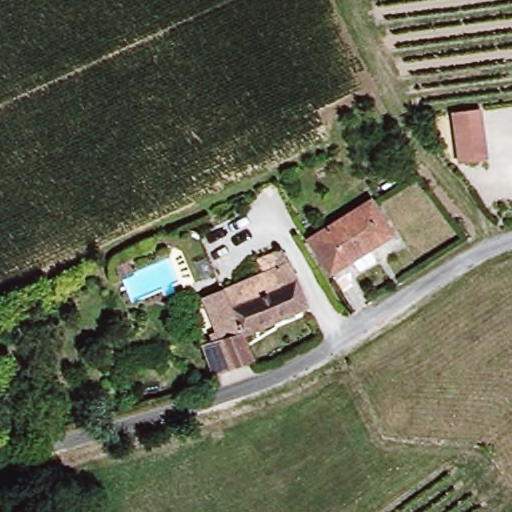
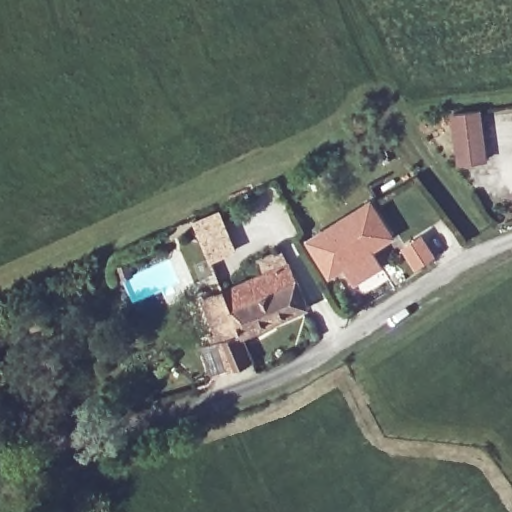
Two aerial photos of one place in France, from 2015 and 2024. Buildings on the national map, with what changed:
unchanged [(460,162),(455,127),(454,115),(481,112),(483,126),(488,158),(460,162)]
unchanged [(372,200),(391,232),(332,270),(312,237),(372,200)]
new [(191,222),(218,207),(239,248),(212,262),(191,222)]
unchanged [(306,305),(244,332),(255,359),(218,375),(207,347),(221,341),(204,300),(217,293),(292,262),(306,305)]

